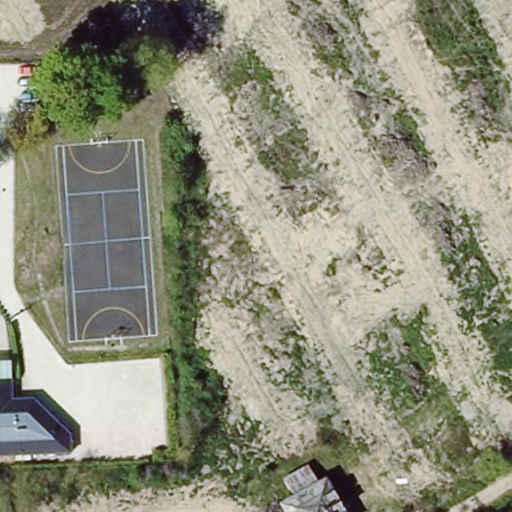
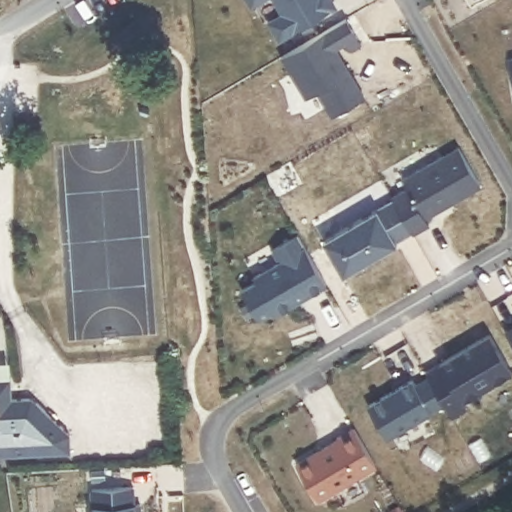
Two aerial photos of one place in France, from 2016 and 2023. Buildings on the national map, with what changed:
new [(251,10),(246,0),(268,0),(251,10)]
new [(335,11),(279,44),(268,26),(282,18),(272,0),(328,0),(335,11)]
new [(475,2),(474,0),(479,0),(475,2)]
new [(349,52),(344,44),(336,48),(363,96),(330,116),(316,91),(305,97),(281,56),(346,18),(361,43),(349,52)]
new [(510,56),(512,56),(512,68),(510,56)]
new [(426,217),(430,223),(412,234),(411,232),(396,240),(397,243),(344,273),(323,238),(378,206),(392,198),(391,195),(406,186),(401,178),(457,145),(480,185),(426,217)]
new [(275,314),(272,309),(258,318),(242,287),(255,280),(253,275),(278,260),(272,249),(298,234),(304,244),(306,244),(326,284),(275,314)]
new [(508,330),(512,328),(512,337),(508,330)]
new [(461,401),(466,408),(452,416),(445,404),(387,438),(368,404),(411,377),(415,382),(426,376),(422,371),(437,362),(490,332),(512,370),(512,372),(461,401)]
unchanged [(15,396),(35,394),(70,430),(70,451),(0,454),(0,358),(12,357),(15,396)]
new [(319,502),(295,461),(336,438),(335,436),(354,425),(378,466),(319,502)]
demolished [(328,481),(344,512),(289,512),(285,503),(328,481)]
new [(136,502),(142,502),(142,512),(95,512),(94,486),(135,485),(136,502)]

